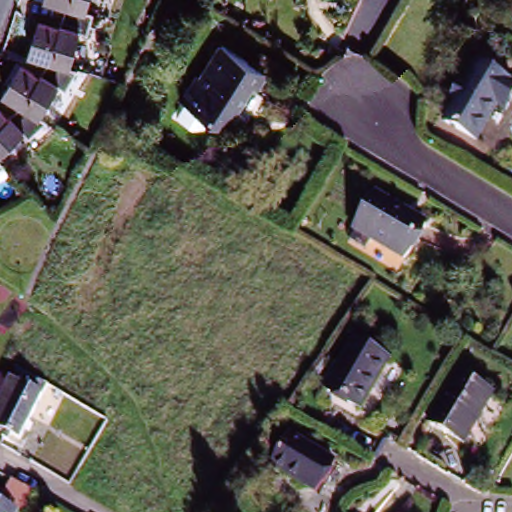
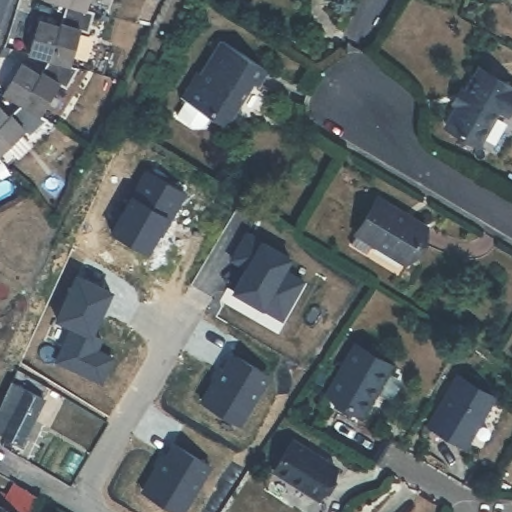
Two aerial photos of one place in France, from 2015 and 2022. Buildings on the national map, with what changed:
unchanged [(14,121),(18,116),(28,107),(11,96),(29,68),(46,78),(48,74),(56,60),(30,51),(40,19),(58,25),(59,21),(65,5),(51,0),(95,0),(91,13),(86,29),(75,66),(85,69),(73,88),(67,85),(46,119),(51,121),(37,136),(33,132),(4,159),(8,163),(13,174),(6,178),(0,169),(0,106),(14,121)]
unchanged [(190,80),(197,84),(222,43),(267,70),(256,87),(249,84),(226,121),(210,111),(207,118),(184,105),(177,101),(190,80)]
unchanged [(511,86),(504,98),(512,102),(512,107),(503,122),(494,117),(478,144),(446,126),(458,105),(451,101),(459,86),(467,90),(479,68),(511,86)]
new [(146,170),(185,191),(170,218),(167,216),(146,253),(111,233),(146,170)]
unchanged [(380,197),(430,226),(408,263),(358,233),(380,197)]
new [(246,234),(290,259),(283,271),(303,282),(288,308),(269,296),(262,308),(233,292),(246,269),(231,260),(246,234)]
new [(96,351),(112,358),(101,383),(56,363),(72,328),(57,320),(77,277),(111,292),(92,335),(101,339),(96,351)]
unchanged [(361,342),(394,362),(365,411),(331,391),(361,342)]
new [(213,381),(215,382),(232,353),(268,375),(239,424),(201,401),(213,381)]
unchanged [(0,410),(10,389),(11,387),(14,379),(16,375),(52,396),(48,404),(42,400),(21,446),(0,436),(0,410)]
unchanged [(470,444),(433,422),(459,376),(495,398),(470,444)]
unchanged [(334,464),(317,495),(274,471),(291,440),(334,464)]
new [(153,472),(156,474),(165,457),(173,444),(210,465),(181,512),(178,512),(142,491),(153,472)]
unchanged [(45,494),(35,512),(0,512),(0,497),(5,501),(18,479),(45,494)]

